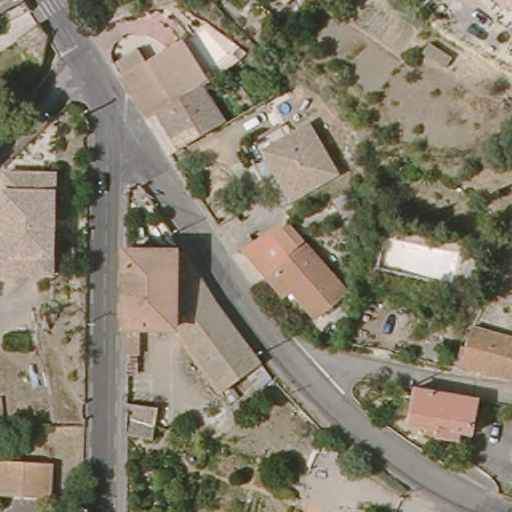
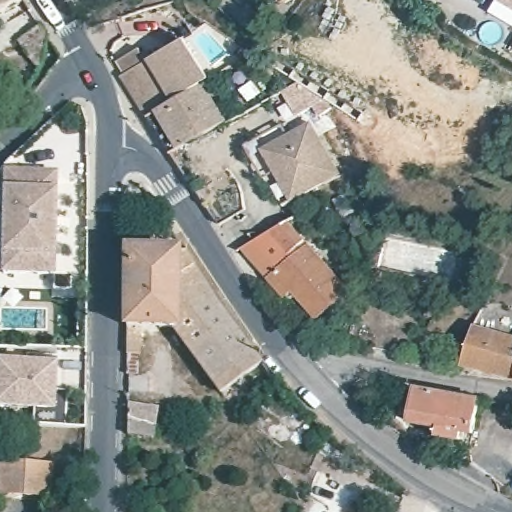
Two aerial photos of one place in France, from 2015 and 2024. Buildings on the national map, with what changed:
unchanged [(1,15),(0,16),(0,0),(30,0),(36,9),(8,25),(1,15)]
unchanged [(302,1),(301,0),(303,0),(302,1)]
unchanged [(497,2),(498,0),(512,0),(512,11),(497,2)]
unchanged [(47,65),(43,72),(22,44),(45,28),(50,37),(48,60),(47,65)]
unchanged [(118,75),(142,60),(150,74),(186,53),(210,92),(207,95),(152,129),(126,88),(118,75)]
unchanged [(152,129),(207,95),(230,131),(217,139),(175,165),(152,129)]
unchanged [(305,206),(296,191),(274,158),(299,140),(318,127),(350,176),(305,206)]
unchanged [(291,129),(299,140),(274,158),(296,191),(284,199),(270,175),(256,153),(291,129)]
unchanged [(63,181),(60,267),(60,280),(11,278),(11,275),(0,275),(0,248),(11,247),(13,201),(14,180),(63,181)]
unchanged [(247,249),(290,221),(311,246),(274,281),(247,249)]
unchanged [(183,242),(208,282),(174,305),(173,319),(138,320),(136,347),(123,348),(123,295),(124,243),(183,242)]
unchanged [(289,297),(274,281),(311,246),(352,291),(322,318),(310,304),(303,297),(296,305),(289,297)]
unchanged [(262,355),(219,385),(173,319),(174,305),(208,282),(244,333),(262,355)]
unchanged [(465,362),(467,355),(476,323),(512,334),(512,375),(471,365),(465,362)]
new [(0,362),(57,363),(56,390),(69,391),(68,427),(35,426),(36,408),(0,408),(0,362)]
unchanged [(415,419),(419,384),(482,395),(477,429),(465,427),(464,436),(442,432),(432,431),(432,422),(415,419)]
unchanged [(160,410),(161,441),(128,438),(128,405),(160,410)]
unchanged [(53,496),(2,491),(4,461),(55,465),(53,496)]

